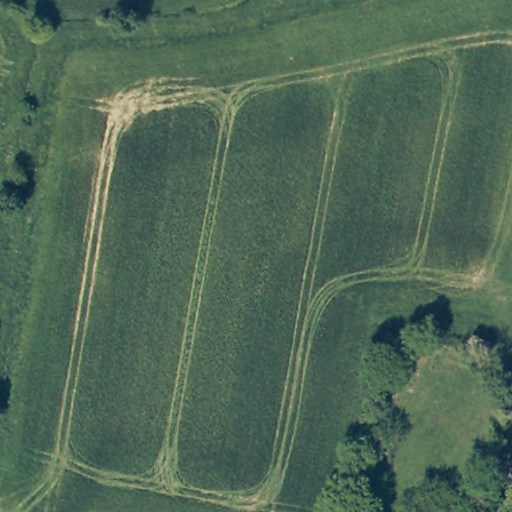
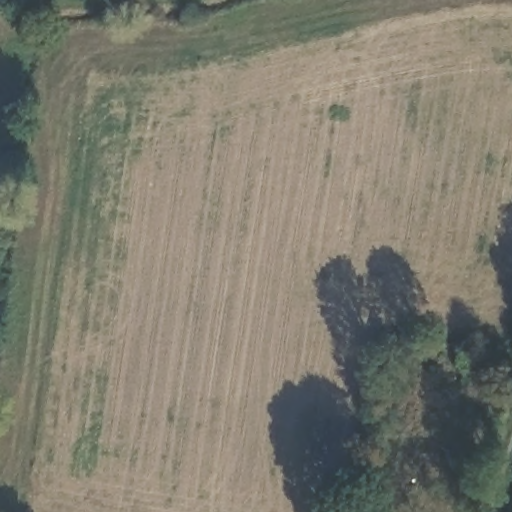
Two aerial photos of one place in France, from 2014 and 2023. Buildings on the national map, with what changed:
unchanged [(383,460),(370,457),(373,441),(386,444),(383,460)]

